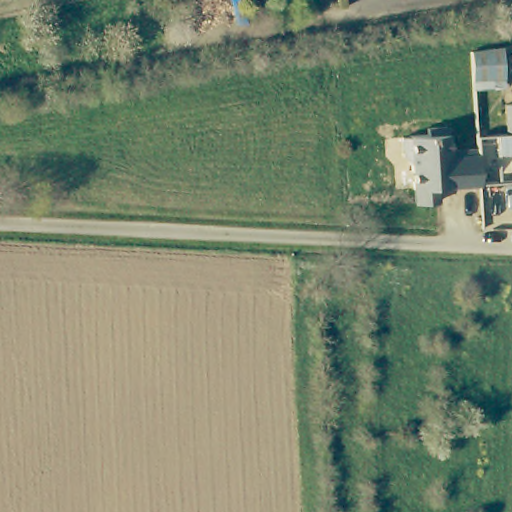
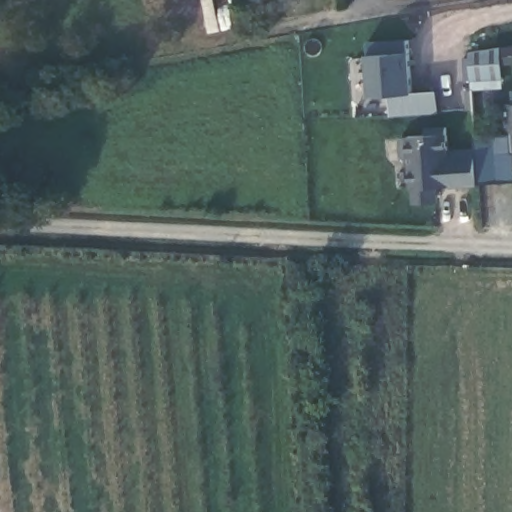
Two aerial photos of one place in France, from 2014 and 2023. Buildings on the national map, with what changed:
new [(410,51),(413,92),(440,89),(440,114),(391,118),(389,94),(371,96),(369,53),(370,41),(409,37),(410,51)]
unchanged [(512,41),(512,71),(481,76),(481,45),(512,41)]
unchanged [(482,179),(481,143),(477,143),(477,131),(505,130),(503,100),(512,99),(512,181),(482,184),(482,179)]
unchanged [(440,179),(440,194),(418,194),(416,155),(408,148),(408,129),(415,128),(416,127),(433,128),(433,120),(453,120),(453,143),(481,143),(482,179),(440,179)]

